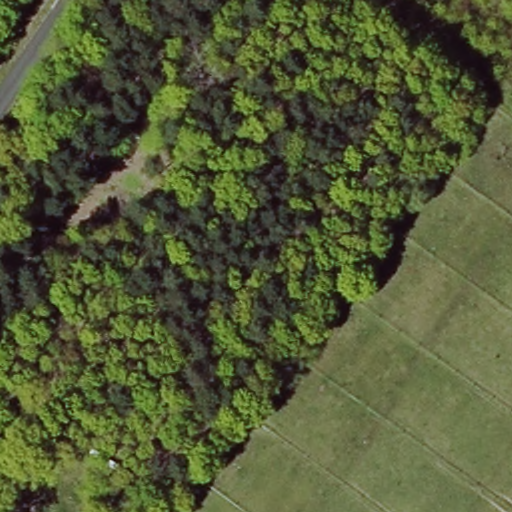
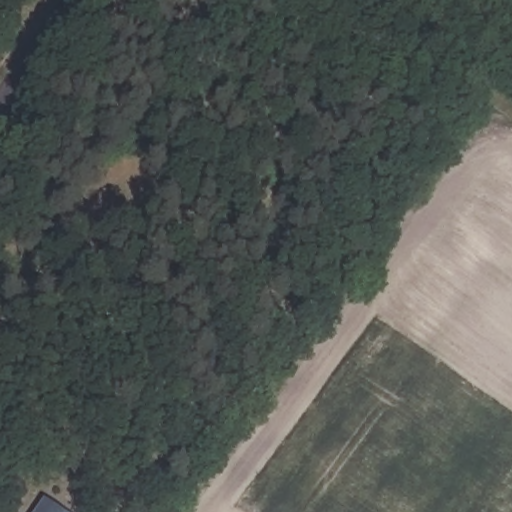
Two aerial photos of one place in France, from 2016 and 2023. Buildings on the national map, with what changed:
[]

